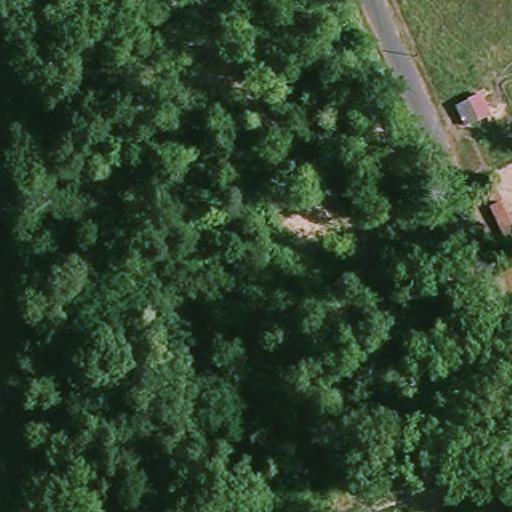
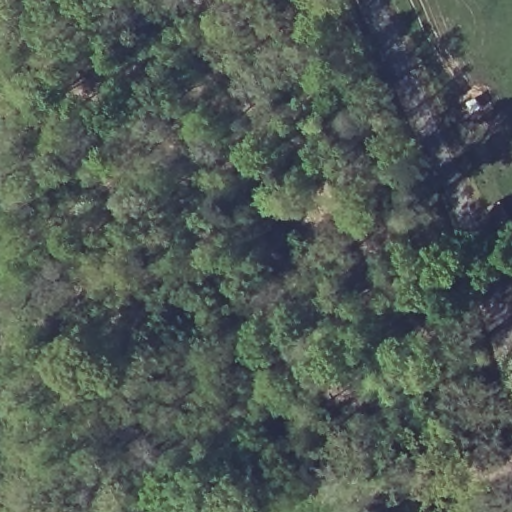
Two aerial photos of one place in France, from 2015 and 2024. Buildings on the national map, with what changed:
[]

